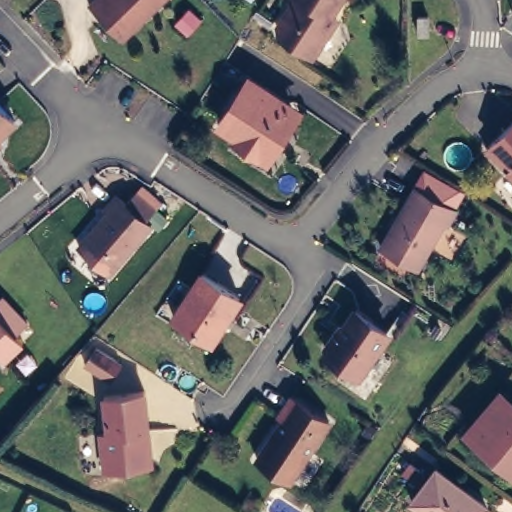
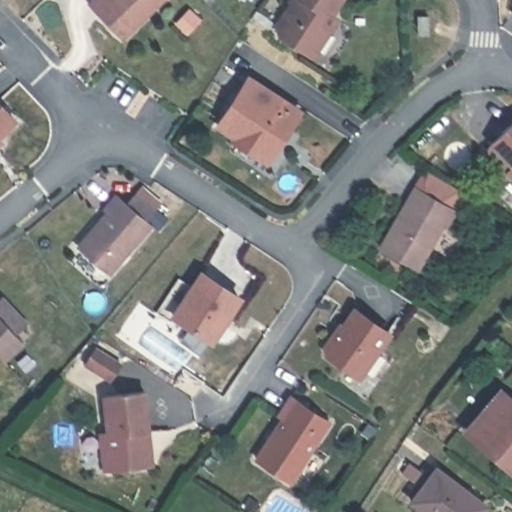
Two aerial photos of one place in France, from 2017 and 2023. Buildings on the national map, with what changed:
unchanged [(122,44),(89,8),(98,0),(168,0),(122,44)]
unchanged [(331,14),(337,18),(314,55),(280,33),(279,24),(294,0),(340,0),(331,14)]
unchanged [(428,34),(419,34),(418,16),(428,15),(428,34)]
unchanged [(256,152),(240,142),(236,138),(238,135),(222,125),(250,80),(293,108),(298,111),(295,117),(273,149),(267,159),(256,152)]
unchanged [(15,119),(0,133),(0,104),(15,119)]
unchanged [(512,123),(512,177),(507,171),(486,149),(491,144),(512,123)]
unchanged [(2,141),(0,143),(0,139),(2,141)]
unchanged [(456,210),(448,225),(444,224),(418,268),(381,247),(392,230),(397,233),(403,222),(397,219),(416,187),(456,210)]
unchanged [(127,209),(137,197),(156,213),(146,225),(152,230),(110,278),(79,250),(108,217),(106,213),(117,200),(127,209)]
unchanged [(234,297),(206,340),(170,316),(198,273),(234,297)]
unchanged [(3,296),(27,322),(16,332),(23,341),(4,358),(0,354),(0,299),(3,296)]
unchanged [(394,334),(364,374),(333,353),(332,346),(342,332),(345,333),(360,310),(394,334)]
unchanged [(121,363),(110,380),(86,364),(97,347),(121,363)]
unchanged [(147,464),(105,469),(101,432),(108,431),(104,396),(145,392),(149,430),(153,464),(147,464)]
unchanged [(512,394),(512,460),(480,433),(512,394)]
unchanged [(330,426),(291,486),(258,463),(284,423),(280,420),(292,402),(330,426)]
unchanged [(424,512),(411,502),(437,469),(485,507),(481,512),(424,512)]

